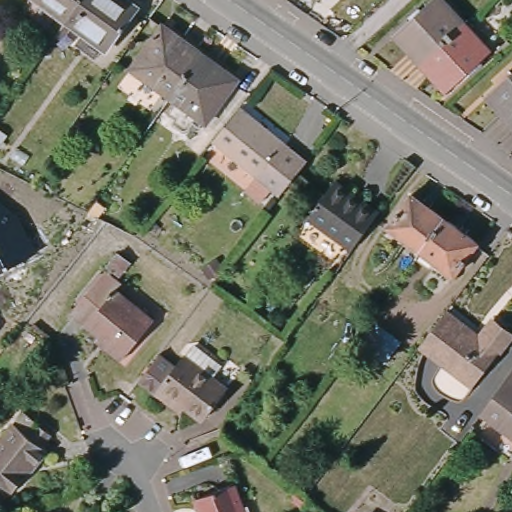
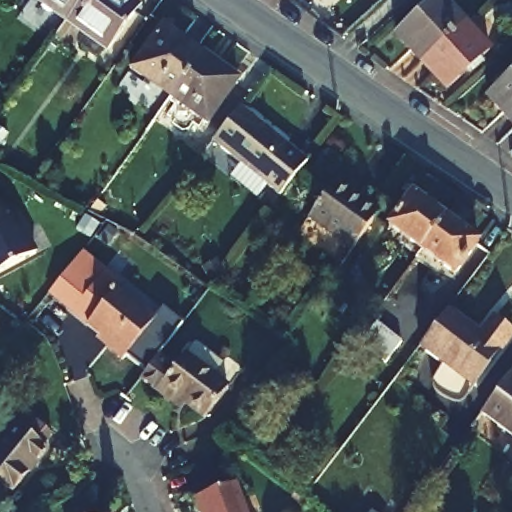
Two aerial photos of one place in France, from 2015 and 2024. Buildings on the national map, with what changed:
unchanged [(82,0),(66,21),(38,0),(82,0)]
unchanged [(115,0),(132,13),(105,49),(66,21),(82,0),(115,0)]
unchanged [(392,33),(430,0),(442,0),(462,22),(418,61),(392,33)]
unchanged [(462,22),(487,50),(445,89),(418,61),(462,22)]
unchanged [(170,97),(131,69),(163,24),(202,53),(170,97)]
unchanged [(202,53),(237,78),(205,122),(170,97),(202,53)]
unchanged [(510,128),(484,99),(512,74),(512,126),(510,128)]
unchanged [(282,194),(213,140),(240,107),(308,160),(282,194)]
unchanged [(363,236),(353,250),(308,217),(333,183),(378,215),(363,236)]
unchanged [(423,253),(389,228),(412,196),(447,221),(423,253)]
unchanged [(0,207),(13,214),(32,255),(0,273),(0,207)]
unchanged [(447,221),(480,245),(456,277),(423,253),(447,221)]
unchanged [(121,286),(117,292),(153,323),(122,362),(106,349),(110,345),(71,314),(105,272),(121,286)]
unchanged [(480,340),(493,322),(512,337),(512,340),(475,390),(420,349),(446,315),(480,340)]
unchanged [(178,404),(145,380),(163,355),(163,354),(180,366),(187,357),(190,358),(196,351),(202,350),(220,362),(223,371),(217,378),(232,388),(210,420),(193,408),(190,413),(178,404)]
unchanged [(478,414),(483,408),(512,369),(512,438),(478,414)]
unchanged [(44,444),(49,447),(13,490),(0,479),(0,439),(24,409),(52,432),(44,444)]
unchanged [(243,512),(199,512),(195,500),(234,486),(243,512)]

